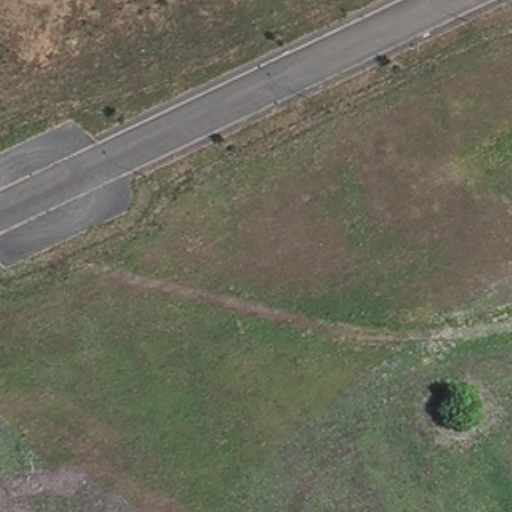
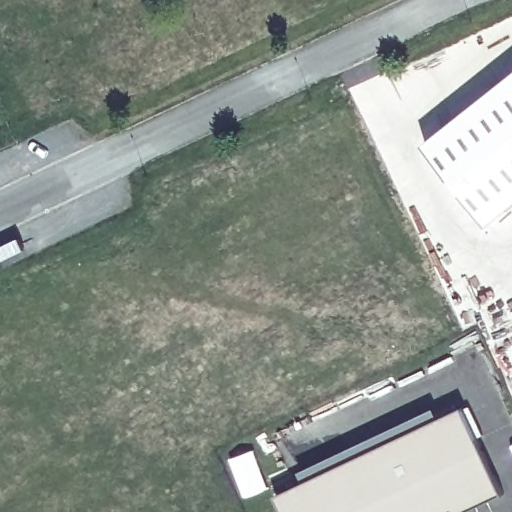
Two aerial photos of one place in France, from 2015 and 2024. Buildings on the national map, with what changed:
new [(512,206),(490,224),(460,189),(423,141),(512,71),(512,206)]
new [(463,408),(504,495),(468,512),(283,512),(276,496),(463,408)]

